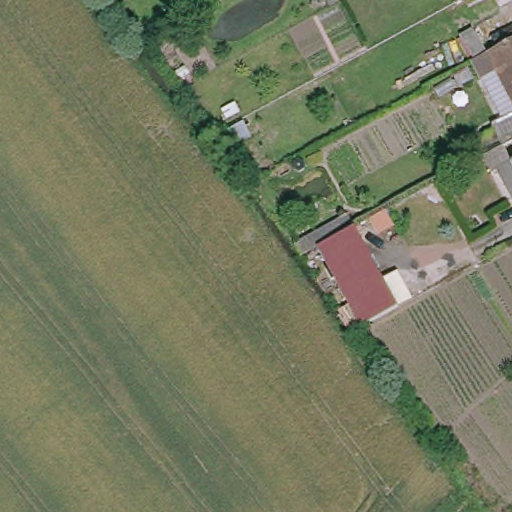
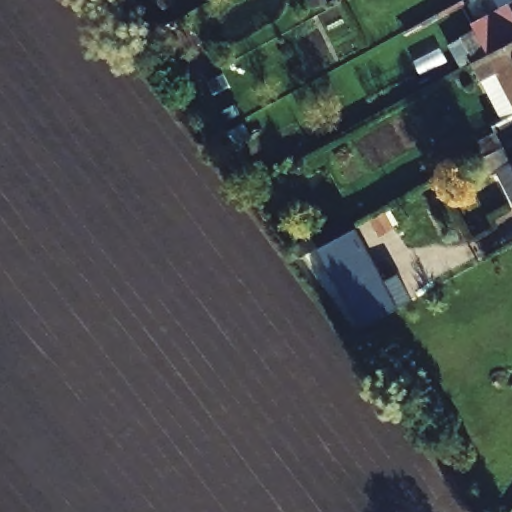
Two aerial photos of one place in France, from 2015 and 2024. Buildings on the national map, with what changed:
unchanged [(504,179),(490,186),(475,158),(488,150),(482,138),(506,125),(484,87),(474,91),(461,67),(472,61),(459,41),(477,32),(488,52),(496,47),(490,38),(512,26),(512,195),(504,179)]
unchanged [(296,260),(358,227),(389,283),(403,275),(418,302),(404,310),(354,338),(296,260)]

